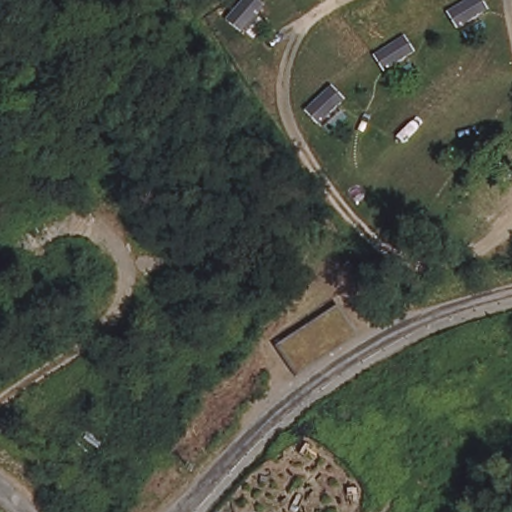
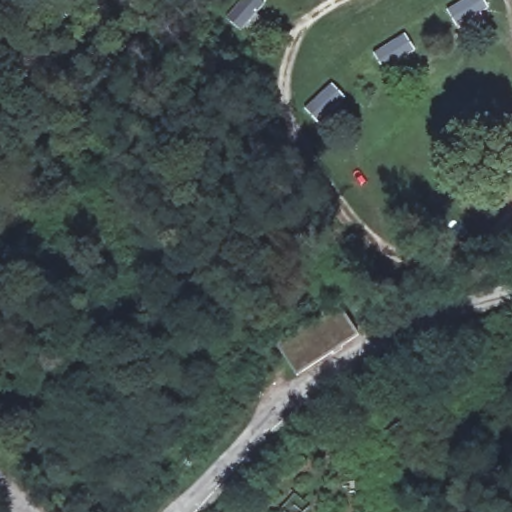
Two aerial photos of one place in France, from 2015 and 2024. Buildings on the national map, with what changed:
unchanged [(335,302),(355,333),(294,373),(272,341),(335,302)]

